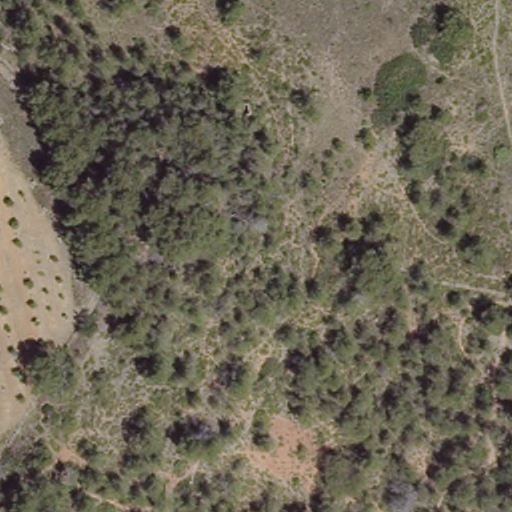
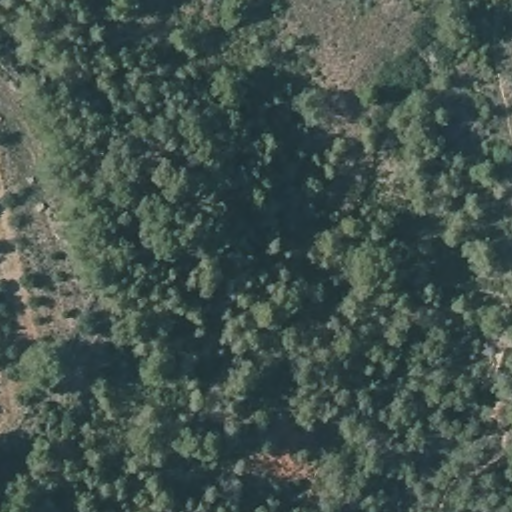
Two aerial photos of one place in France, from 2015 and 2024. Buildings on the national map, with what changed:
unchanged [(247,105),(231,105),(231,95),(247,95),(247,105)]

